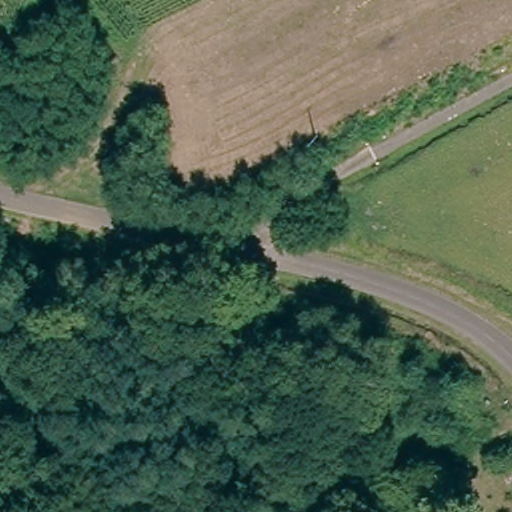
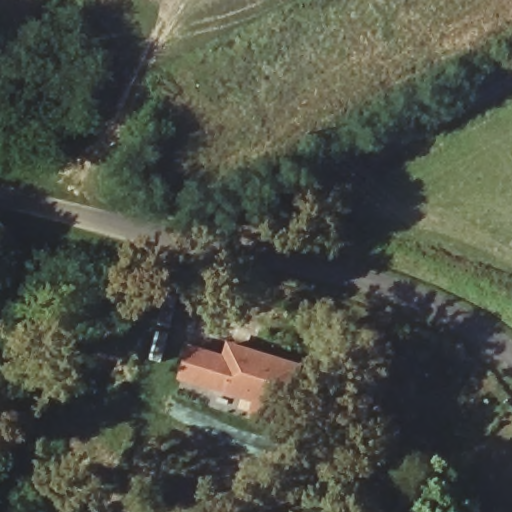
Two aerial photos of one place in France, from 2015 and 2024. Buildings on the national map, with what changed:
new [(283,420),(253,410),(257,397),(182,376),(191,345),(225,354),(230,342),(302,365),(283,420)]

